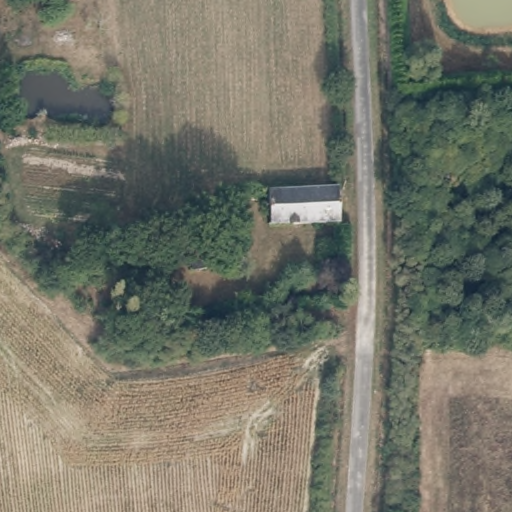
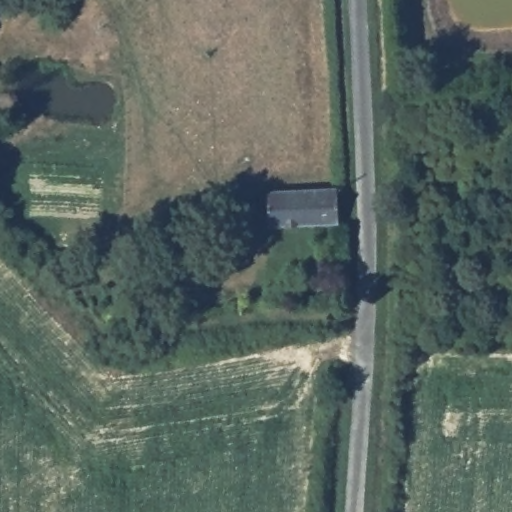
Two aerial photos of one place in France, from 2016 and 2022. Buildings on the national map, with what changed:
unchanged [(337,223),(271,227),(269,191),(335,188),(337,223)]
unchanged [(243,230),(244,242),(229,243),(226,233),(243,230)]
unchanged [(219,238),(222,267),(192,269),(190,242),(219,238)]

